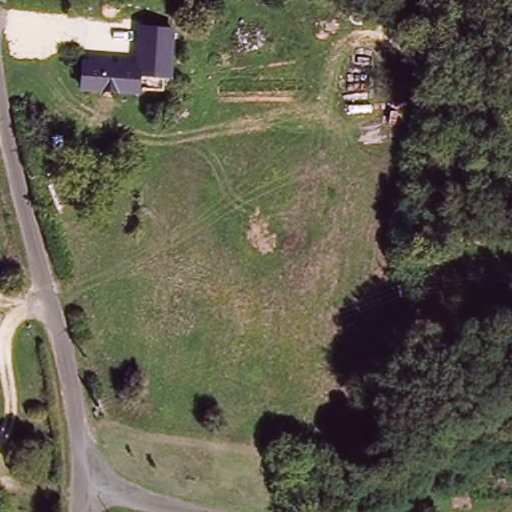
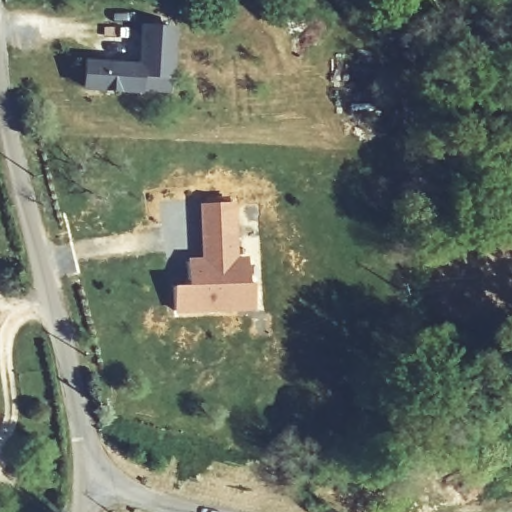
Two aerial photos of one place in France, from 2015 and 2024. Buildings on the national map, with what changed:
unchanged [(148,32),(173,33),(173,90),(92,92),(91,65),(147,65),(148,32)]
unchanged [(439,79),(426,79),(426,64),(439,65),(439,79)]
new [(189,263),(206,262),(206,252),(206,235),(236,234),(236,262),(249,262),(250,285),(255,285),(256,308),(176,311),(175,287),(191,287),(189,263)]

